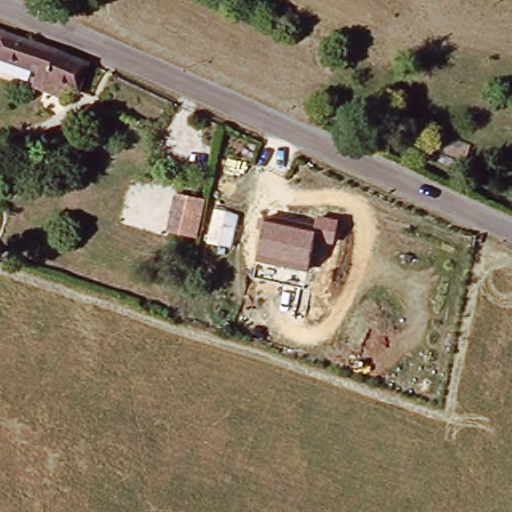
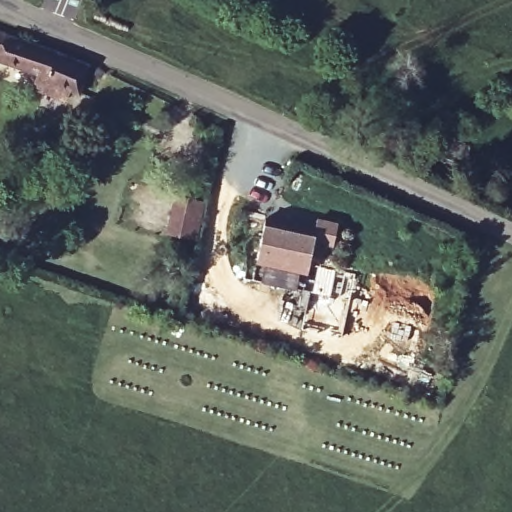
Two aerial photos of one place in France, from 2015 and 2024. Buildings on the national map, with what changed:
unchanged [(35,96),(39,88),(41,81),(0,69),(0,35),(90,67),(78,97),(65,93),(60,105),(35,96)]
unchanged [(205,202),(196,240),(166,233),(175,195),(205,202)]
unchanged [(268,214),(316,226),(319,216),(338,221),(332,246),(316,243),(305,287),(253,275),(268,214)]

